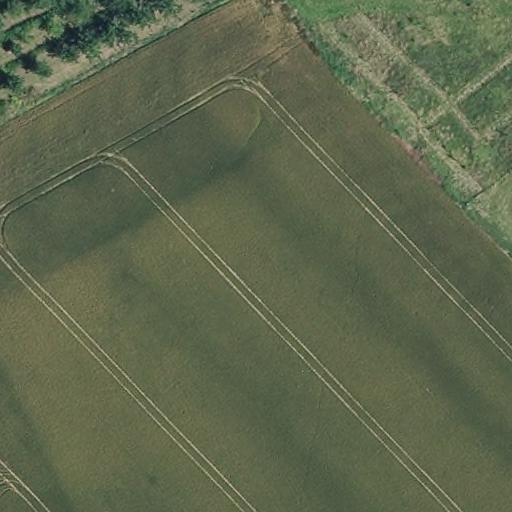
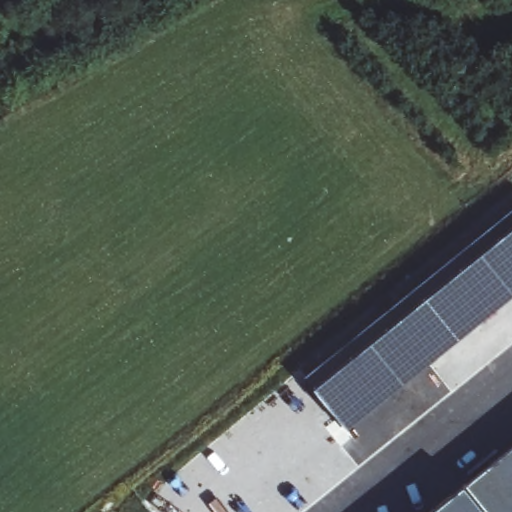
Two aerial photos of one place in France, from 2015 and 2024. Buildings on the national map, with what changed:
new [(306,376),(512,209),(512,297),(348,429),(306,376)]
new [(465,487),(512,449),(512,512),(434,512),(465,487)]

